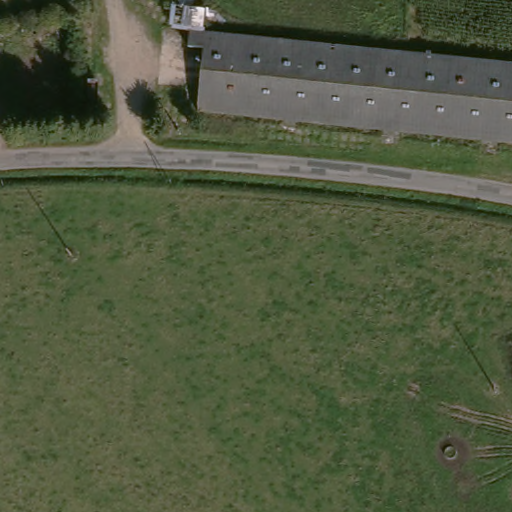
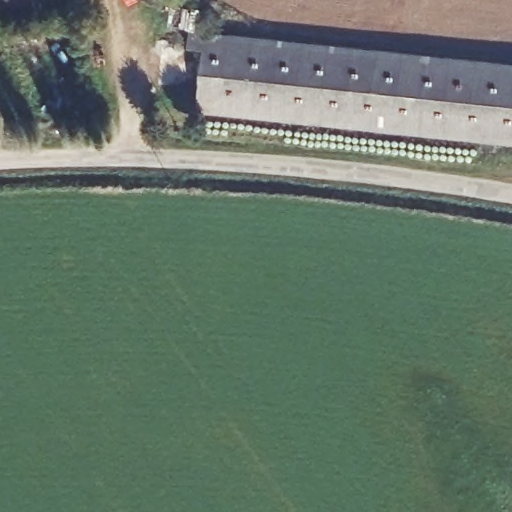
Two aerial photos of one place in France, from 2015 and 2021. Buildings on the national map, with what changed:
unchanged [(197,127),(200,66),(184,65),(185,49),(202,49),(202,45),(512,59),(512,144),(197,127)]

